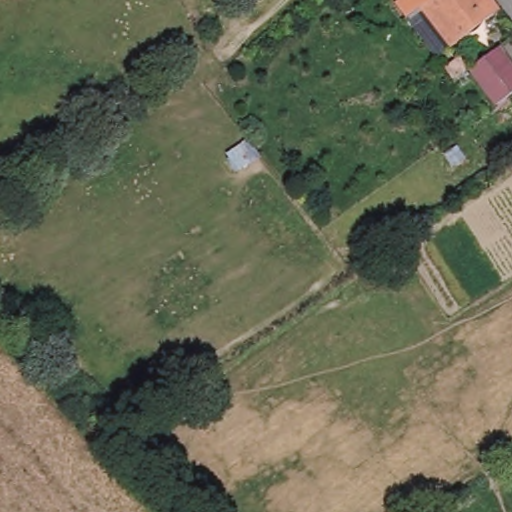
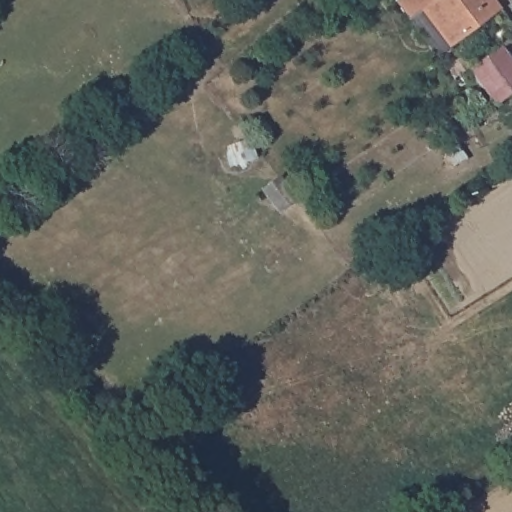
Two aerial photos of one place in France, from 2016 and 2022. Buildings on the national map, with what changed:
unchanged [(430,0),(486,0),(493,9),(447,45),(418,8),(430,0)]
unchanged [(512,64),(512,79),(489,95),(462,61),(492,38),(512,64)]

